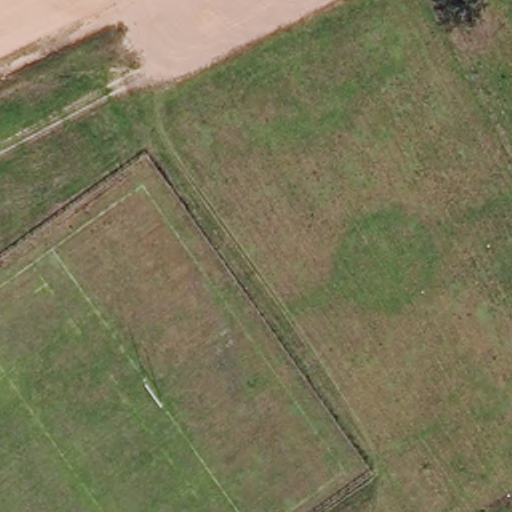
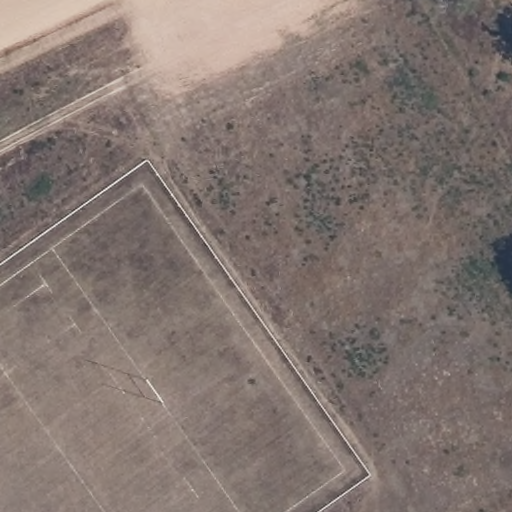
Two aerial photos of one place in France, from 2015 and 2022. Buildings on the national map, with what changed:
[]

